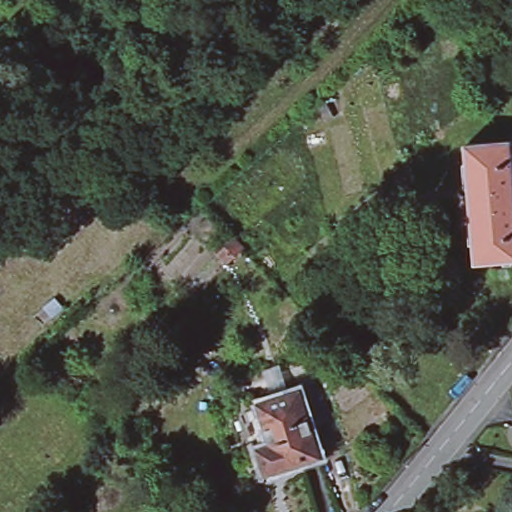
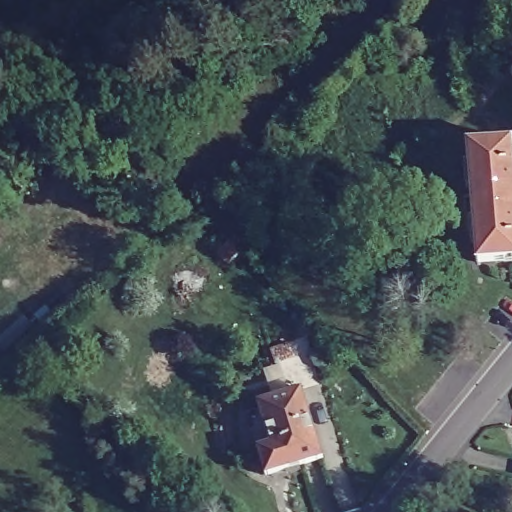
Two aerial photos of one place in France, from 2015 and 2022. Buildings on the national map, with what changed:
unchanged [(512,259),(477,262),(468,144),(512,140),(512,259)]
unchanged [(228,263),(218,252),(235,238),(245,248),(228,263)]
unchanged [(300,386),(322,454),(265,472),(257,446),(271,441),(257,399),(300,386)]

